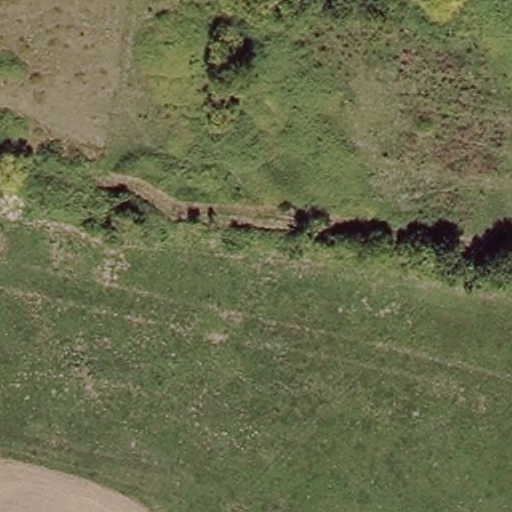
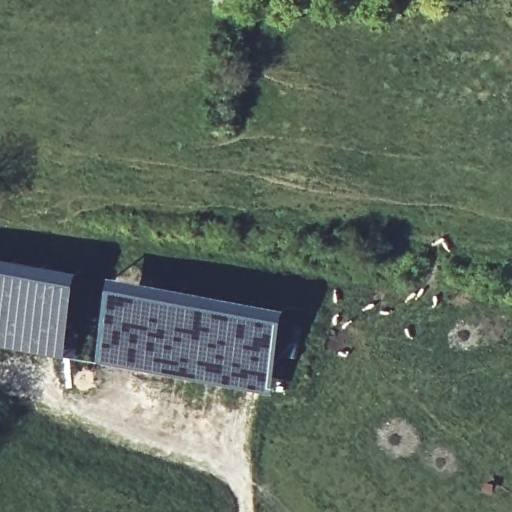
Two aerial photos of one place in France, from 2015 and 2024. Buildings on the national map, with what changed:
new [(68,355),(0,344),(0,256),(81,271),(68,355)]
new [(111,276),(147,280),(291,305),(273,391),(97,360),(111,276)]

